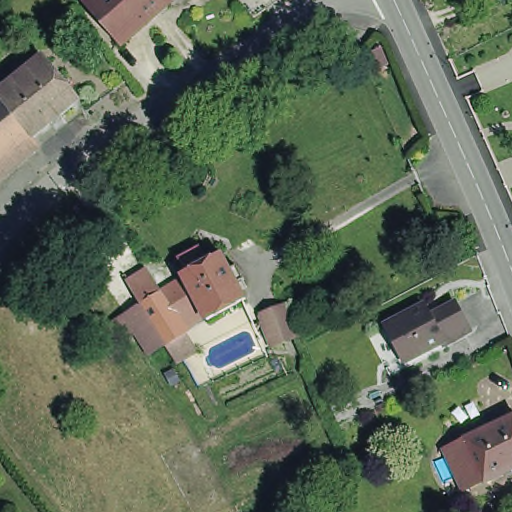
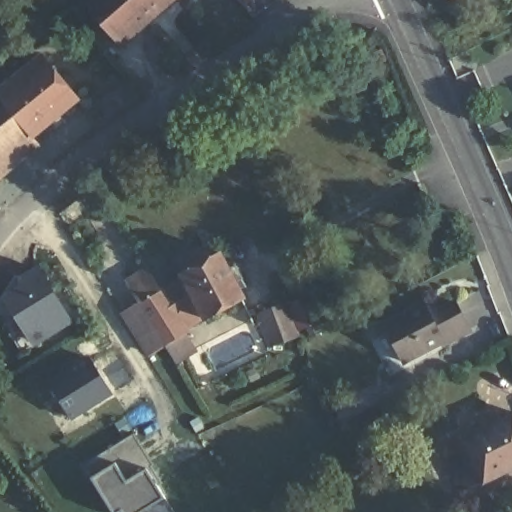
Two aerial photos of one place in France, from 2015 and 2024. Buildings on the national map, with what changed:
unchanged [(125,45),(89,5),(95,0),(136,0),(153,22),(125,45)]
unchanged [(153,22),(136,0),(177,0),(153,22)]
unchanged [(4,87),(10,95),(46,65),(81,108),(37,145),(0,175),(0,91),(4,87)]
unchanged [(176,365),(163,344),(160,345),(147,353),(124,315),(137,307),(141,305),(128,284),(146,273),(159,296),(181,283),(179,280),(181,277),(174,265),(193,254),(200,267),(216,257),(226,274),(233,270),(240,284),(234,288),(243,304),(205,324),(197,311),(191,315),(186,308),(178,312),(181,318),(181,334),(182,333),(194,355),(176,365)]
new [(11,289),(29,260),(70,325),(29,349),(0,303),(0,297),(11,289)]
unchanged [(272,343),(261,315),(286,305),(297,333),(272,343)]
unchanged [(429,318),(455,305),(469,333),(444,347),(441,346),(404,365),(384,328),(424,307),(429,318)]
new [(109,396),(66,423),(43,383),(86,358),(109,396)]
unchanged [(463,438),(463,437),(512,413),(512,467),(509,468),(482,481),(481,480),(463,488),(444,447),(463,438)]
new [(140,473),(158,502),(142,512),(118,512),(117,510),(114,512),(108,512),(79,466),(131,435),(149,467),(140,473)]

